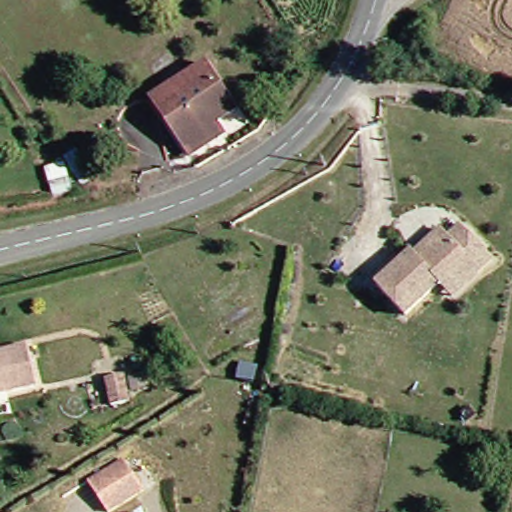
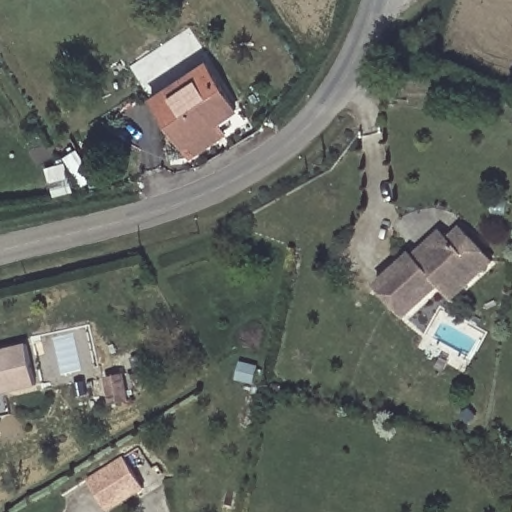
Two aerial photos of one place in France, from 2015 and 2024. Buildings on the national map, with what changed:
unchanged [(195,156),(160,97),(217,62),(247,110),(222,124),(229,137),(195,156)]
unchanged [(441,288),(438,285),(404,315),(375,283),(410,251),(414,255),(442,230),(449,239),(462,227),(492,261),(477,275),(451,297),(441,288)]
unchanged [(0,398),(0,362),(0,354),(10,352),(35,346),(45,388),(0,398)]
unchanged [(134,370),(139,396),(121,400),(116,373),(134,370)]
unchanged [(127,459),(145,491),(110,512),(109,512),(90,480),(127,459)]

